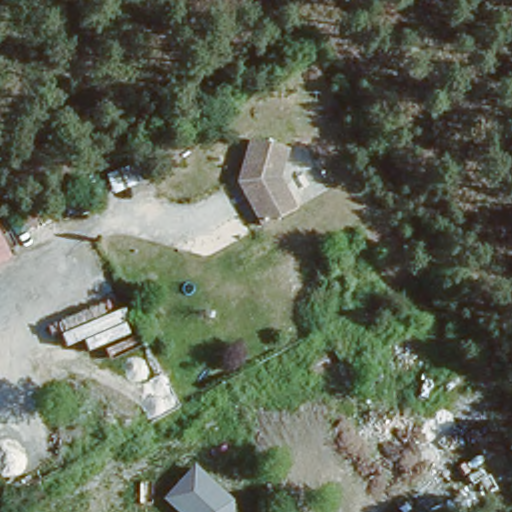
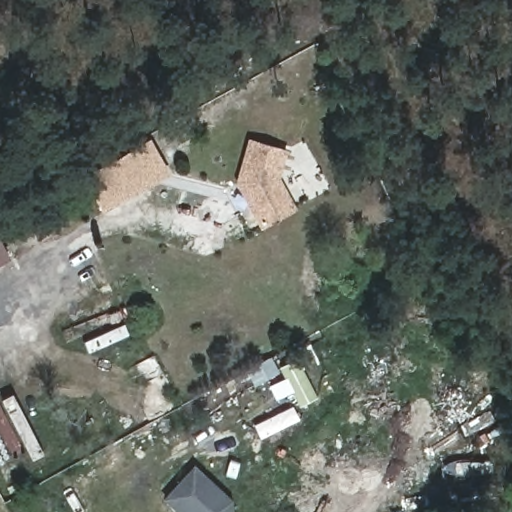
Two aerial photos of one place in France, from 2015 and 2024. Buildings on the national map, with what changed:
unchanged [(279,177),(296,210),(264,228),(238,184),(250,139),(286,152),(279,177)]
new [(93,194),(104,188),(96,173),(152,142),(171,175),(103,212),(93,194)]
unchanged [(197,467),(233,501),(233,512),(179,512),(166,501),(197,467)]

